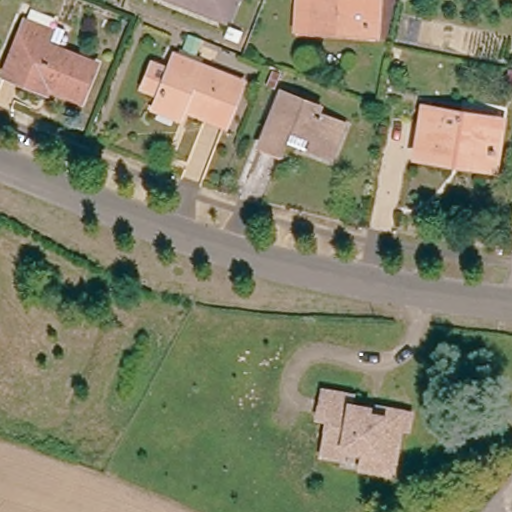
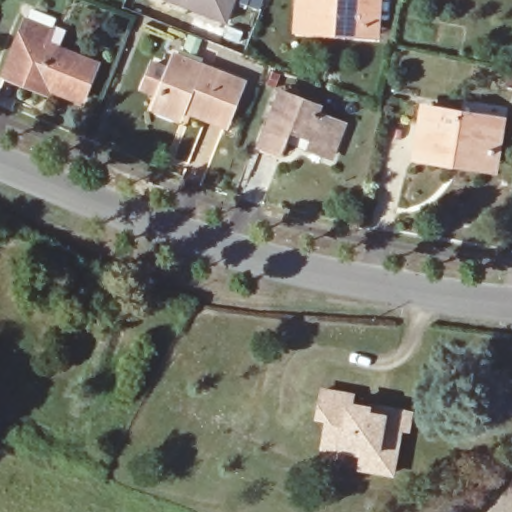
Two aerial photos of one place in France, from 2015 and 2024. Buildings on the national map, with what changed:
unchanged [(227,22),(221,20),(220,22),(166,0),(236,0),(227,22)]
unchanged [(362,35),(342,33),(295,30),(298,0),(379,0),(377,26),(376,36),(362,35)]
unchanged [(3,72),(5,66),(26,12),(27,13),(31,5),(56,14),(51,26),(55,27),(57,22),(66,25),(58,44),(97,60),(82,97),(50,84),(47,90),(3,72)]
unchanged [(219,37),(224,26),(238,32),(234,43),(219,37)]
unchanged [(203,45),(194,68),(242,87),(226,127),(185,110),(180,123),(154,113),(160,96),(144,90),(152,67),(170,74),(175,60),(180,62),(189,40),(203,45)]
unchanged [(281,75),(275,89),(266,85),(272,71),(281,75)]
unchanged [(319,107),(316,114),(343,125),(330,156),(310,148),(309,151),(287,142),(283,154),(260,145),(281,92),(319,107)]
unchanged [(452,162),(416,157),(423,109),(501,121),(497,144),(494,169),(452,162)]
unchanged [(321,447),(322,440),(327,412),(317,410),(322,383),(351,388),(350,398),(368,401),(367,406),(376,407),(378,400),(402,403),(410,405),(406,422),(400,420),(391,466),(360,461),(363,442),(343,438),(342,443),(341,451),(321,447)]

